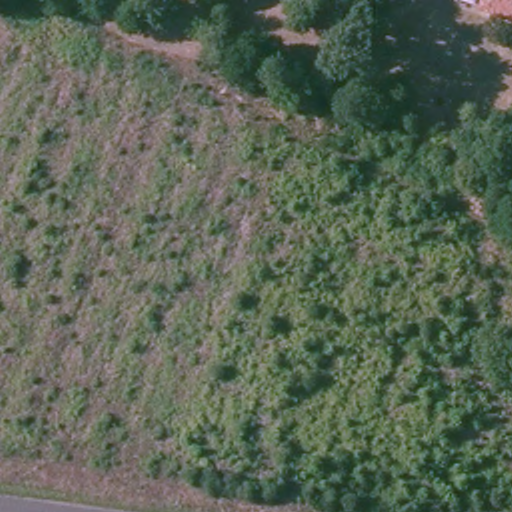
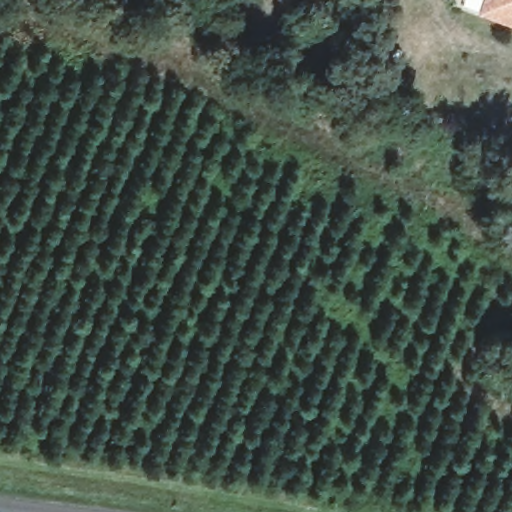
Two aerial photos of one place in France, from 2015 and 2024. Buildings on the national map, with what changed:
unchanged [(487,0),(512,0),(512,17),(484,5),(487,0)]

